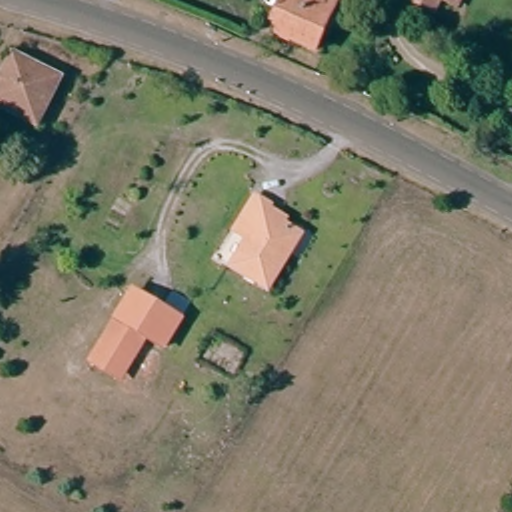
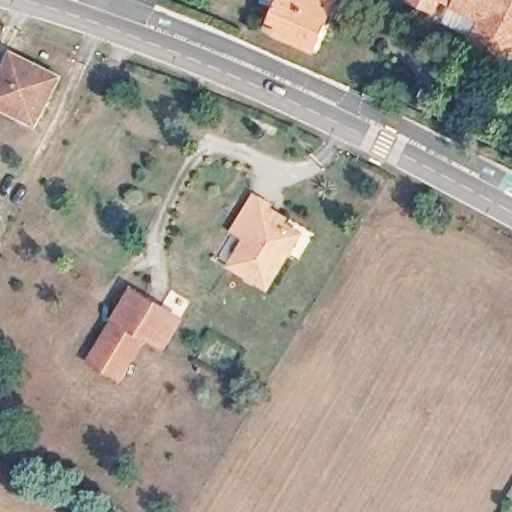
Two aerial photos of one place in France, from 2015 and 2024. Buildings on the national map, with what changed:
unchanged [(282,30),(283,24),(275,19),(283,0),(339,0),(318,46),(282,30)]
unchanged [(458,0),(452,11),(449,10),(436,4),(431,16),(406,5),(408,0),(458,0)]
new [(483,20),(454,7),(458,0),(512,0),(512,50),(477,34),(483,20)]
unchanged [(15,58),(57,81),(34,125),(0,105),(0,84),(15,58)]
unchanged [(267,209),(263,216),(298,238),(266,289),(231,269),(248,241),(233,233),(254,200),(267,209)]
unchanged [(136,292),(183,321),(166,349),(142,335),(119,320),(136,292)]
unchanged [(119,320),(142,335),(116,377),(92,363),(119,320)]

